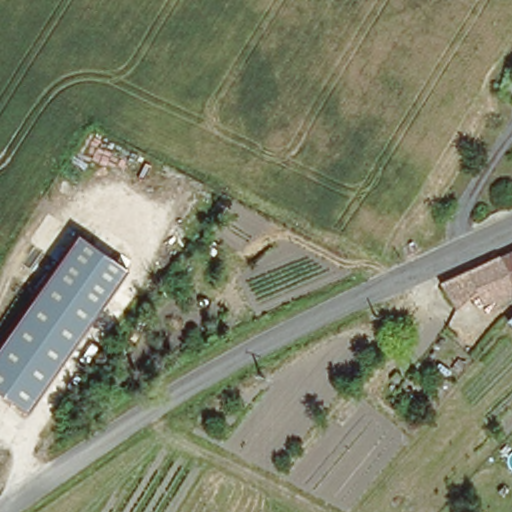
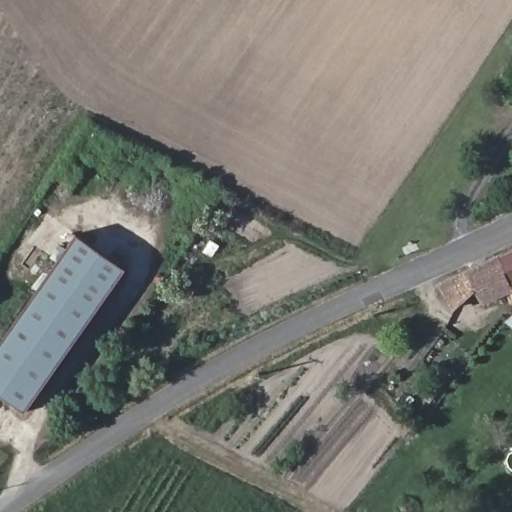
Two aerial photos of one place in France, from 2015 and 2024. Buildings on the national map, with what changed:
unchanged [(0,394),(0,343),(77,237),(127,271),(26,411),(0,394)]
unchanged [(512,252),(512,294),(484,303),(480,295),(456,305),(454,302),(444,283),(512,252)]

